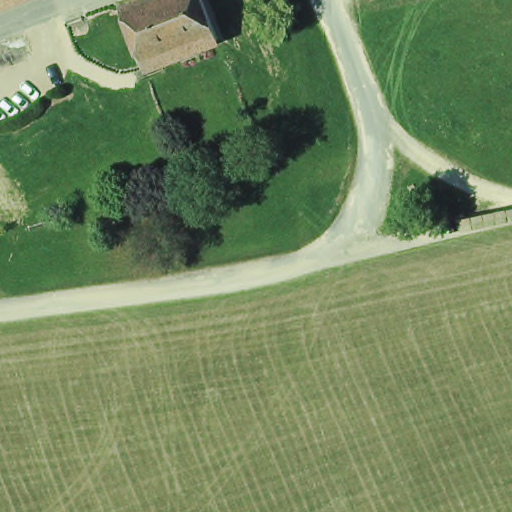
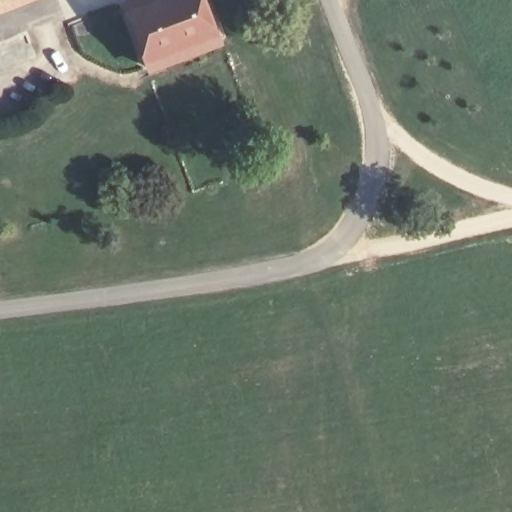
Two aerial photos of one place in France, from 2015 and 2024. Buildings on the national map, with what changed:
unchanged [(143,69),(122,10),(148,0),(203,0),(217,41),(143,69)]

